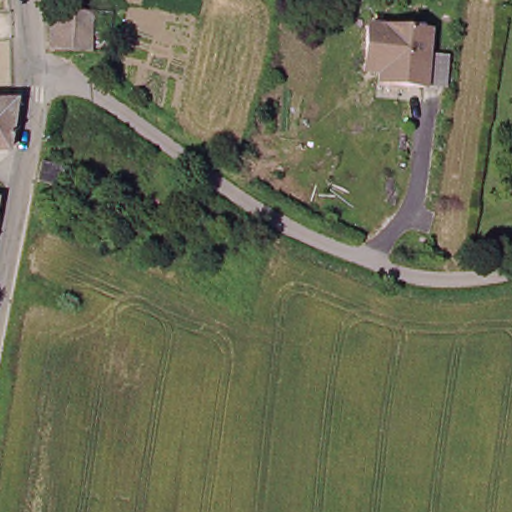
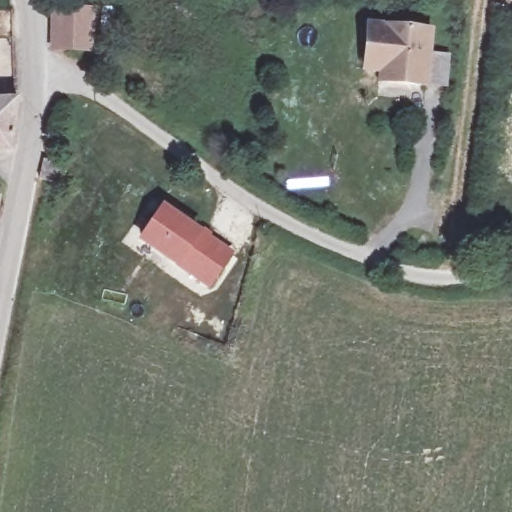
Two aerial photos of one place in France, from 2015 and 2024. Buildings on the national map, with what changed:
unchanged [(51,12),(91,11),(91,49),(53,50),(51,12)]
unchanged [(391,87),(391,72),(377,71),(382,25),(444,31),(442,56),(461,57),(458,88),(438,86),(424,86),(423,90),(391,87)]
unchanged [(20,100),(15,148),(0,149),(0,100),(20,100)]
new [(176,267),(139,240),(163,207),(203,235),(233,256),(208,290),(176,267)]

